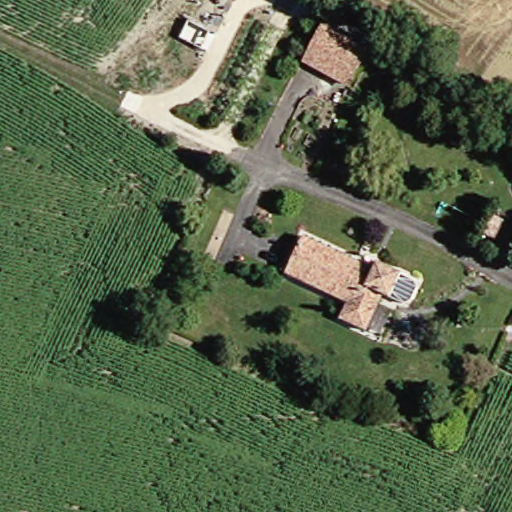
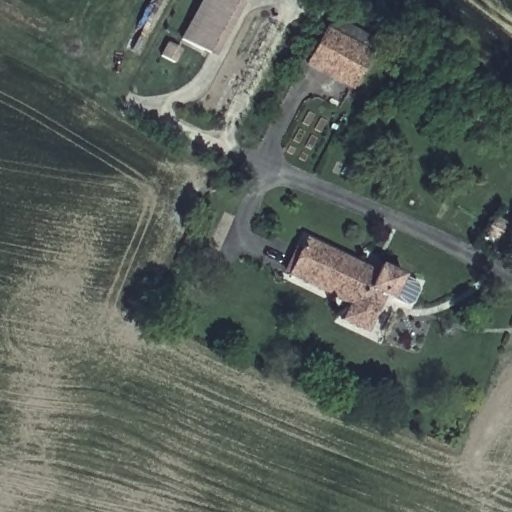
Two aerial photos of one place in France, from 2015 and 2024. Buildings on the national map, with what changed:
new [(200,0),(237,0),(242,3),(215,56),(180,39),(200,0)]
unchanged [(320,21),(369,44),(343,90),(297,66),(320,21)]
unchanged [(397,286),(385,307),(376,301),(355,336),(331,320),(338,308),(282,270),(303,236),(367,277),(373,269),(397,286)]

